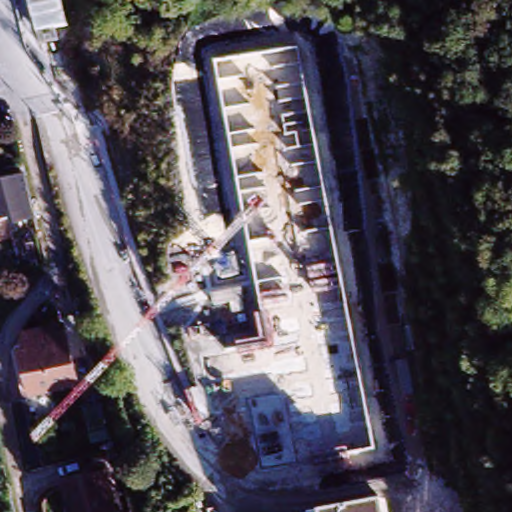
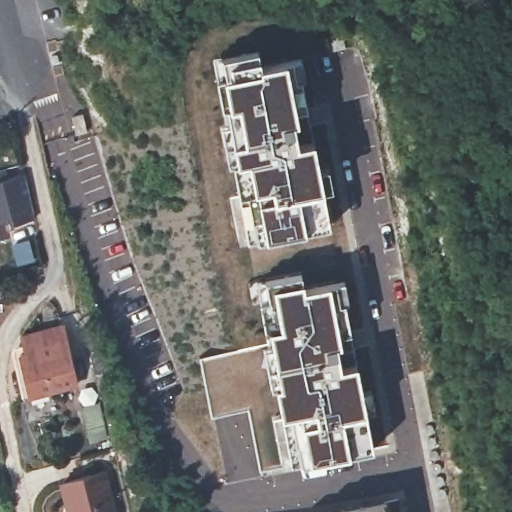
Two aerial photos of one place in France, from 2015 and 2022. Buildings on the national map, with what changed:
new [(266,237),(249,241),(242,193),(238,161),(230,106),(223,106),(218,80),(226,77),(223,56),(258,50),(262,66),(288,62),(298,60),(307,109),(314,140),(323,190),(329,224),(305,230),(266,237)]
unchanged [(11,220),(0,222),(0,181),(1,180),(11,220)]
new [(348,451),(308,458),(292,460),(283,413),(276,385),(281,383),(273,343),(269,326),(266,327),(262,300),(270,299),(266,280),(301,272),(304,280),(304,286),(331,282),(336,281),(341,300),(344,300),(349,331),(356,362),(366,411),(373,447),(348,451)]
unchanged [(27,355),(23,338),(65,328),(69,345),(79,387),(31,398),(22,356),(27,355)]
new [(281,383),(276,385),(283,413),(292,460),(259,468),(248,408),(212,412),(200,355),(273,343),(281,383)]
unchanged [(72,512),(64,478),(105,469),(115,512),(72,512)]
unchanged [(386,512),(323,512),(384,500),(386,512)]

